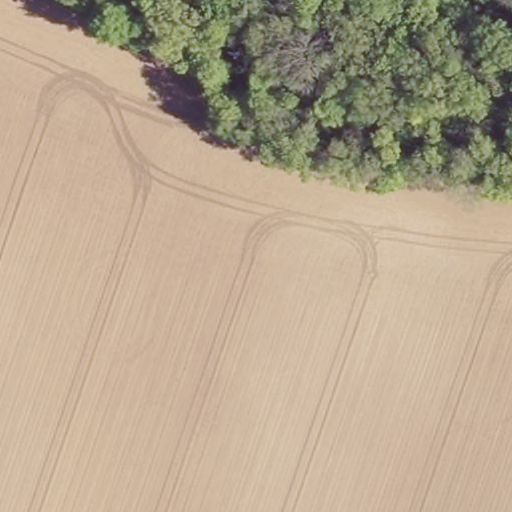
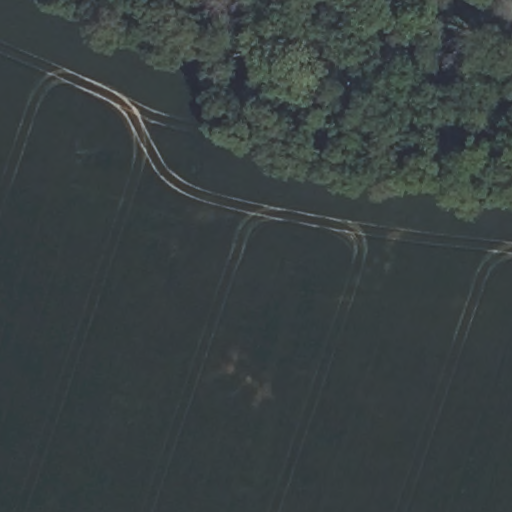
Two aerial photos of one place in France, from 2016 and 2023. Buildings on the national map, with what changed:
[]

